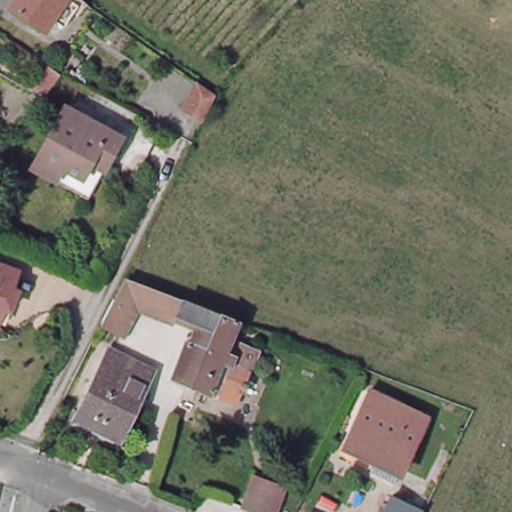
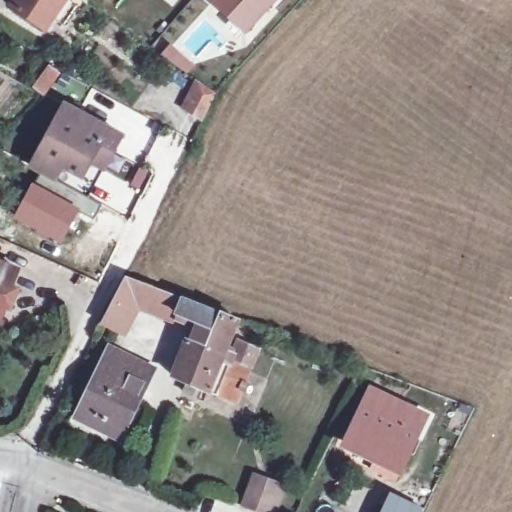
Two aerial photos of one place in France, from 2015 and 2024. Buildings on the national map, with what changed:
unchanged [(60,23),(47,16),(40,27),(7,5),(10,0),(71,0),(60,23)]
new [(244,30),(212,1),(213,0),(272,0),(244,30)]
unchanged [(88,5),(85,12),(79,7),(82,1),(88,5)]
unchanged [(65,79),(54,95),(45,90),(57,73),(65,79)]
unchanged [(212,120),(190,108),(203,83),(224,97),(212,120)]
unchanged [(53,175),(29,162),(36,149),(60,101),(102,122),(117,130),(110,145),(86,192),(53,175)]
new [(32,180),(65,197),(72,187),(101,202),(92,217),(80,211),(60,244),(12,218),(32,180)]
unchanged [(10,287),(15,290),(7,310),(2,308),(0,312),(0,265),(17,271),(10,287)]
unchanged [(105,323),(110,311),(117,297),(122,287),(127,278),(189,302),(184,314),(179,312),(175,321),(138,306),(125,333),(105,323)]
unchanged [(219,327),(184,314),(189,302),(240,322),(230,347),(227,355),(214,348),(219,340),(213,337),(219,327)]
unchanged [(219,340),(214,348),(227,355),(235,358),(220,391),(202,383),(200,391),(187,385),(188,378),(175,372),(188,339),(194,341),(198,331),(213,337),(219,340)]
unchanged [(90,429),(76,422),(110,353),(150,373),(119,434),(115,442),(90,429)]
unchanged [(367,467),(376,450),(347,436),(372,385),(427,411),(402,462),(393,479),(367,467)]
unchanged [(287,494),(280,512),(251,512),(261,485),(287,494)]
unchanged [(389,512),(395,502),(415,512),(389,512)]

